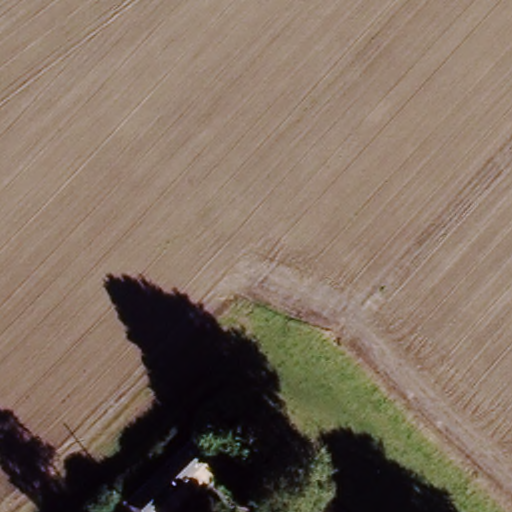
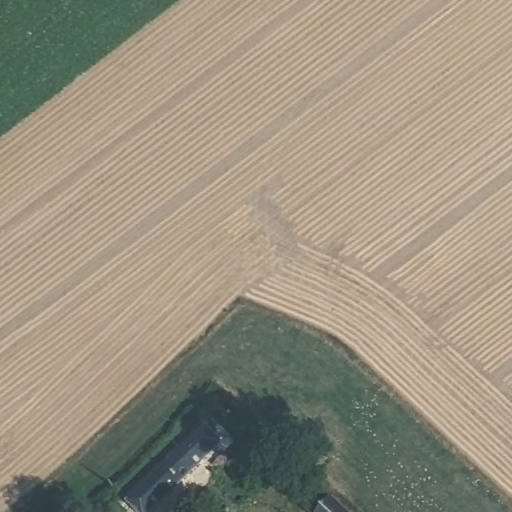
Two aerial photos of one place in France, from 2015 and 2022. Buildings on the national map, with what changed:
unchanged [(214,453),(148,512),(129,512),(123,506),(198,437),(214,453)]
unchanged [(306,511),(287,494),(304,472),(325,491),(348,512),(308,512),(306,511)]

